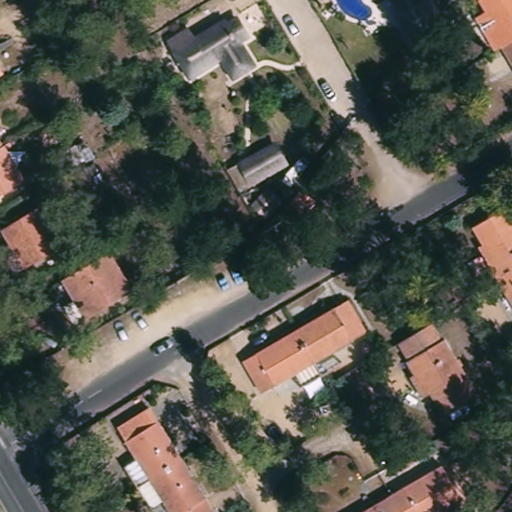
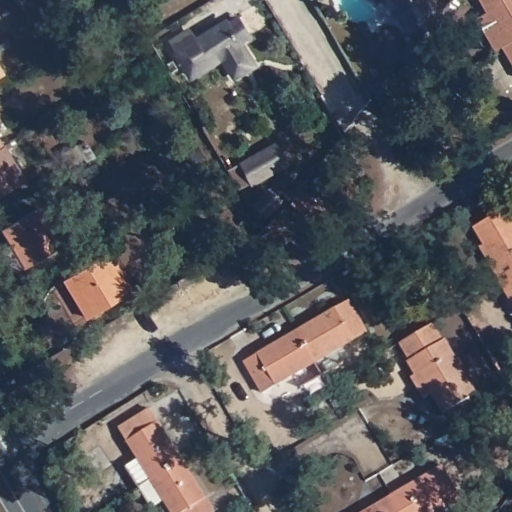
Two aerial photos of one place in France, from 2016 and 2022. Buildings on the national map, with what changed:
unchanged [(395,0),(423,0),(401,11),(395,0)]
unchanged [(491,52),(473,19),(484,13),(476,0),(512,0),(512,69),(499,48),(491,52)]
unchanged [(240,78),(228,59),(194,79),(172,44),(191,32),(197,40),(229,20),(231,24),(241,19),(253,39),(244,44),(246,48),(258,66),(240,78)]
unchanged [(8,74),(0,78),(0,62),(8,74)]
unchanged [(4,146),(0,149),(0,141),(4,146)]
unchanged [(285,166),(250,187),(239,165),(273,145),(285,166)]
unchanged [(25,182),(0,197),(0,149),(4,146),(25,182)]
unchanged [(85,158),(72,166),(66,156),(79,148),(85,158)]
unchanged [(250,203),(261,184),(274,192),(263,210),(250,203)]
unchanged [(287,205),(299,191),(313,203),(301,217),(287,205)]
unchanged [(512,311),(477,249),(481,247),(470,229),(505,209),(512,222),(512,311)]
unchanged [(60,248),(25,269),(3,232),(38,210),(60,248)]
unchanged [(138,292),(91,319),(67,282),(113,253),(138,292)]
unchanged [(360,338),(254,400),(236,369),(342,307),(360,338)]
unchanged [(444,419),(434,401),(430,403),(410,369),(412,368),(402,351),(435,330),(445,349),(447,347),(478,399),(444,419)]
unchanged [(120,465),(134,457),(116,430),(148,409),(213,512),(169,512),(150,481),(136,489),(120,465)]
unchanged [(465,502),(448,511),(448,512),(369,512),(445,467),(465,502)]

